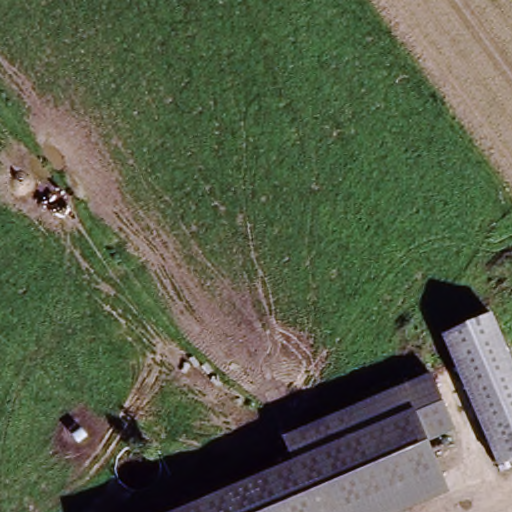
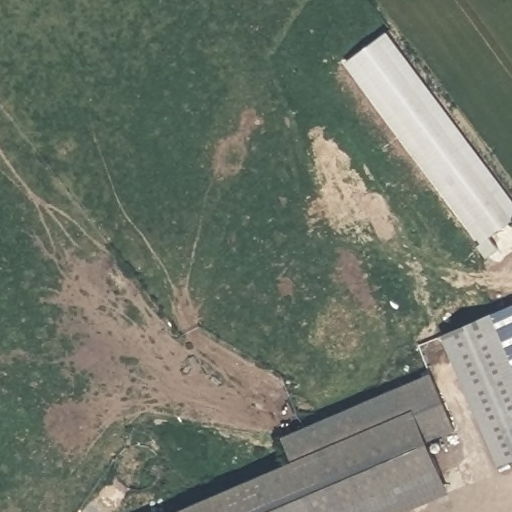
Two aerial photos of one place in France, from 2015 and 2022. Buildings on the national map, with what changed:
new [(512,222),(490,237),(500,250),(486,259),(476,246),(481,243),(347,62),(388,32),(512,199),(512,222)]
unchanged [(512,362),(512,462),(495,469),(439,334),(491,313),(512,362)]
unchanged [(292,461),(285,437),(428,374),(452,427),(428,437),(450,494),(404,512),(175,512),(292,461)]

